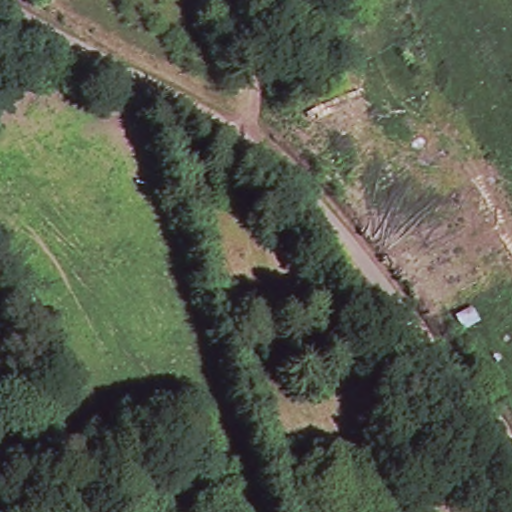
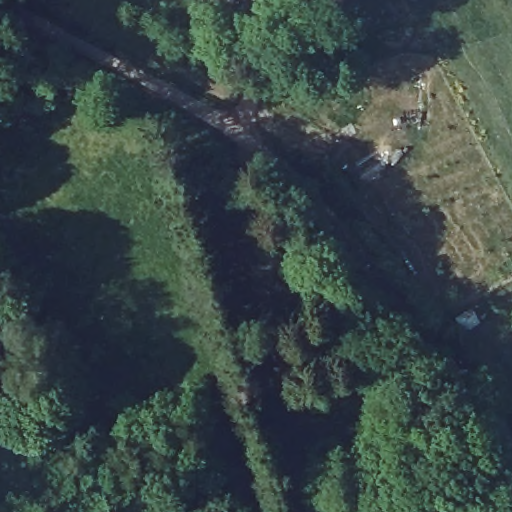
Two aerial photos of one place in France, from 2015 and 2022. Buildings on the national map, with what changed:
unchanged [(197,493),(195,508),(187,506),(190,492),(197,493)]

